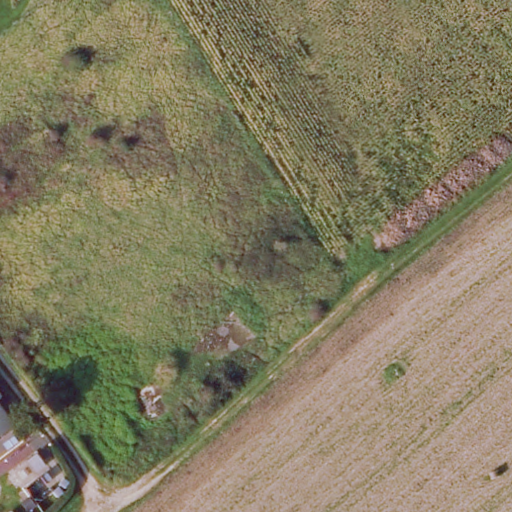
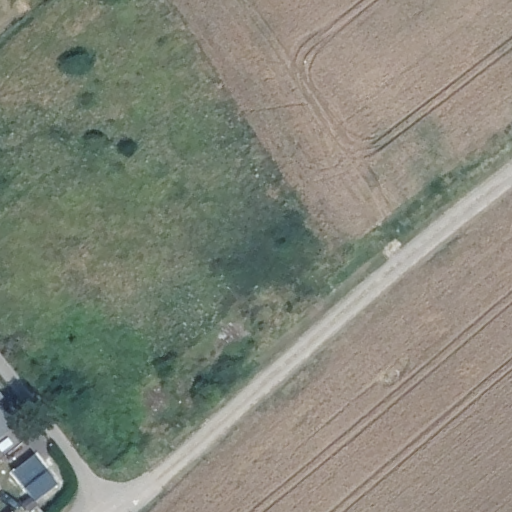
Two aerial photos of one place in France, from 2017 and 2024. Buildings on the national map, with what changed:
unchanged [(12,424),(0,433),(0,411),(12,424)]

